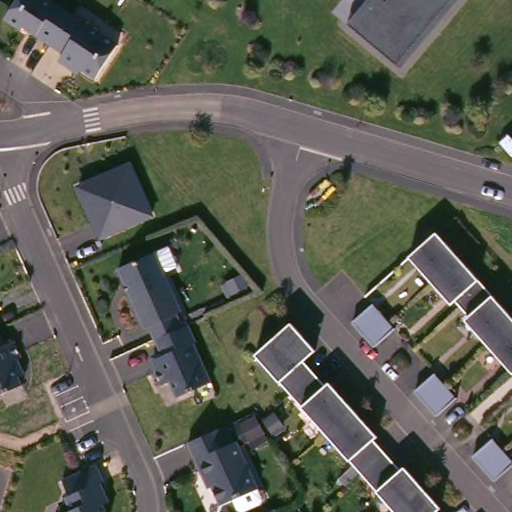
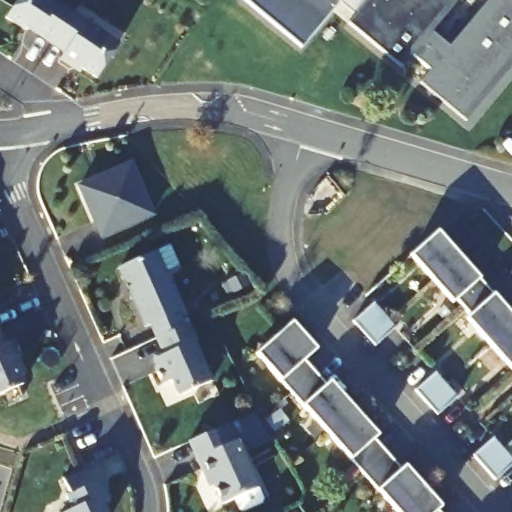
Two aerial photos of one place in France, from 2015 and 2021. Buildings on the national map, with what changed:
unchanged [(25,25),(9,15),(18,0),(60,0),(75,10),(55,39),(29,21),(25,25)]
new [(301,50),(242,1),(243,0),(334,0),(339,4),(301,50)]
unchanged [(350,24),(368,0),(457,0),(400,67),(350,24)]
new [(503,0),(512,0),(512,82),(479,121),(433,82),(444,69),(426,54),(445,31),(463,47),(503,0)]
unchanged [(75,10),(123,41),(101,75),(80,61),(77,65),(64,56),(70,47),(55,39),(75,10)]
unchanged [(93,217),(76,182),(126,159),(150,209),(101,232),(94,217),(93,217)]
unchanged [(512,363),(509,365),(483,335),(487,332),(456,297),(452,300),(427,272),(431,268),(420,256),(436,241),(443,235),(512,311),(512,363)]
unchanged [(178,325),(157,335),(151,321),(146,323),(120,263),(156,247),(184,306),(179,308),(185,322),(178,325)]
unchanged [(2,305),(0,306),(0,300),(2,305)]
unchanged [(396,327),(376,345),(353,320),(372,303),(373,302),(396,327)]
unchanged [(3,325),(0,326),(0,318),(3,325)]
unchanged [(198,337),(196,338),(214,378),(180,393),(173,376),(164,381),(156,364),(158,363),(155,356),(165,351),(157,335),(178,325),(185,322),(187,321),(190,320),(198,337)]
unchanged [(411,476),(415,473),(440,500),(436,505),(442,511),(443,512),(400,512),(261,353),(297,321),(322,349),(310,360),(331,385),(342,397),(346,393),(372,423),(368,426),(379,439),(406,470),(411,476)]
unchanged [(3,325),(10,341),(20,337),(27,355),(24,356),(30,371),(25,373),(28,381),(0,393),(0,326),(3,325)]
unchanged [(457,393),(457,394),(437,411),(415,385),(435,368),(435,367),(457,393)]
unchanged [(226,422),(234,440),(237,438),(257,486),(220,503),(207,474),(204,475),(188,439),(226,422)]
unchanged [(512,462),(495,477),(491,473),(472,451),(492,435),(493,434),(512,456),(512,462)]
unchanged [(100,477),(104,489),(107,487),(110,495),(104,497),(109,512),(60,512),(59,507),(72,502),(67,489),(70,487),(65,471),(85,462),(100,457),(106,475),(100,477)]

